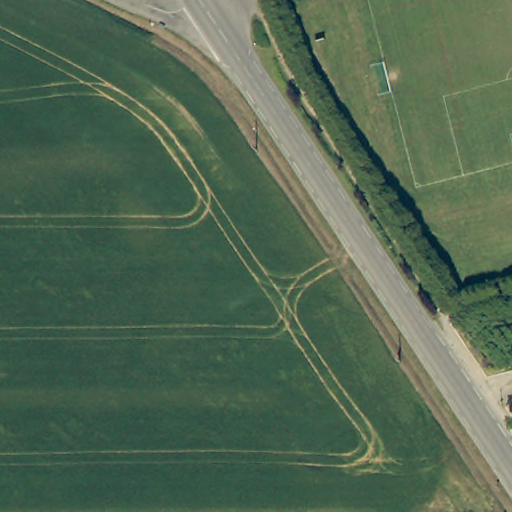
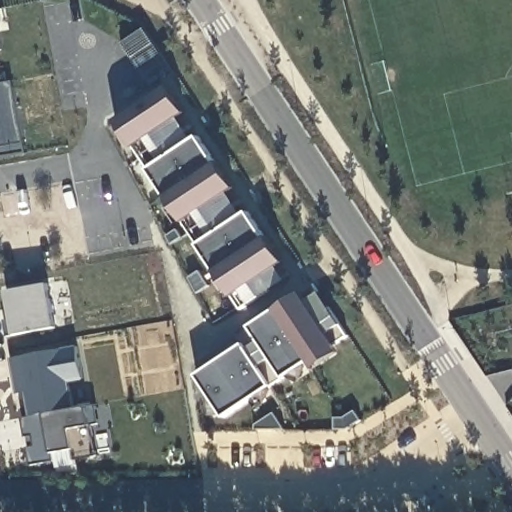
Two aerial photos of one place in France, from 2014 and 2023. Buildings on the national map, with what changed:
new [(0,50),(0,40),(1,50),(0,50)]
new [(3,157),(1,147),(0,148),(0,84),(13,82),(24,153),(3,157)]
new [(185,113),(177,119),(193,141),(198,137),(235,189),(228,195),(242,217),(248,212),(284,263),(278,267),(286,282),(249,305),(240,311),(233,297),(232,296),(214,271),(199,245),(183,222),(165,196),(147,170),(134,147),(115,121),(168,87),(185,113)]
new [(58,329),(15,336),(6,337),(4,321),(11,319),(6,292),(48,284),(58,329)]
new [(244,345),(247,350),(259,342),(249,327),(302,293),(305,300),(319,292),(348,336),(334,344),(339,353),(313,370),(308,362),(284,377),(271,386),(224,417),(194,376),(244,345)]
new [(83,379),(69,382),(74,408),(95,405),(98,424),(92,425),(97,457),(30,465),(21,417),(29,416),(25,393),(16,394),(10,358),(77,347),(83,379)]

